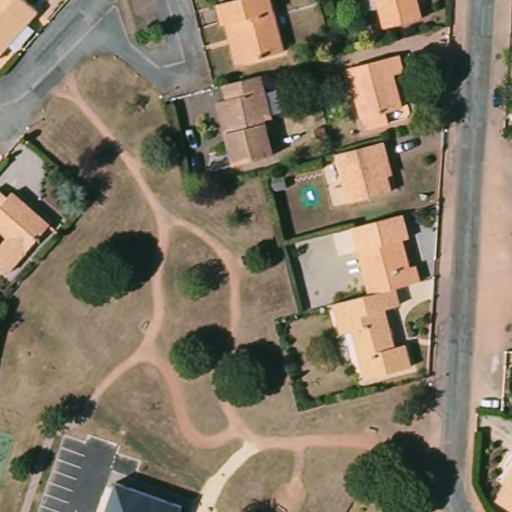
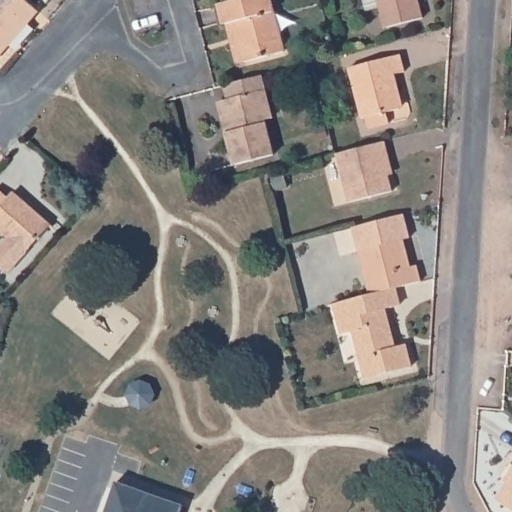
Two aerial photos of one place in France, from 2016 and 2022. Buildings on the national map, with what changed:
unchanged [(0,0),(21,0),(37,15),(26,28),(7,51),(0,59),(0,0)]
unchanged [(224,28),(220,9),(237,5),(236,0),(264,0),(267,0),(282,54),(242,65),(234,68),(224,28)]
unchanged [(417,3),(421,21),(384,30),(379,10),(365,13),(362,0),(416,0),(417,3)]
unchanged [(399,53),(405,72),(387,76),(395,108),(383,111),(385,122),(364,128),(360,117),(356,118),(343,68),(399,53)]
unchanged [(270,120),(263,123),(272,159),(230,169),(223,137),(216,105),(225,103),(222,88),(259,80),(270,120)]
unchanged [(336,153),(383,141),(387,160),(383,162),(389,191),(344,202),(332,154),(336,153)]
unchanged [(277,181),(280,196),(265,199),(262,184),(277,181)]
unchanged [(0,277),(0,240),(1,239),(0,238),(0,197),(4,201),(11,195),(24,206),(46,226),(0,278),(0,277)]
unchanged [(401,228),(407,251),(400,253),(407,281),(413,279),(417,297),(393,303),(369,308),(358,265),(352,239),(358,238),(375,234),(401,228)]
unchanged [(369,308),(393,303),(397,320),(380,324),(394,365),(405,362),(411,385),(363,396),(353,350),(344,352),(342,345),(327,348),(321,320),(369,308)]
unchanged [(495,512),(485,506),(510,464),(505,461),(512,447),(512,512),(495,512)]
unchanged [(175,512),(102,512),(112,484),(177,506),(175,512)]

